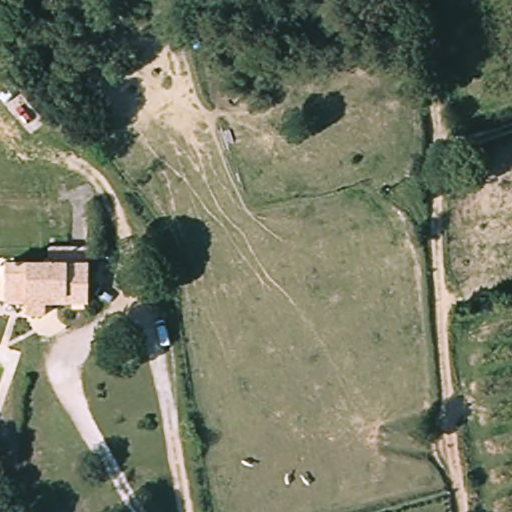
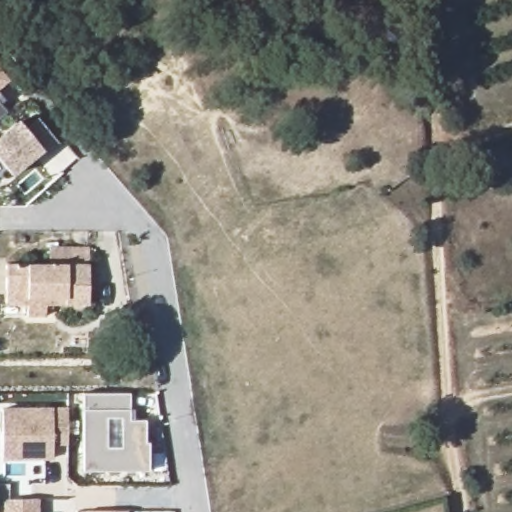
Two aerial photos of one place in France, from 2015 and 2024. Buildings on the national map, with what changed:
new [(11,80),(0,89),(0,67),(11,80)]
new [(0,117),(0,94),(5,100),(2,103),(7,111),(0,117)]
new [(25,126),(37,117),(59,143),(46,154),(43,150),(12,175),(0,160),(0,135),(18,119),(25,126)]
unchanged [(50,267),(50,250),(88,250),(90,304),(51,305),(51,315),(30,315),(30,306),(6,306),(6,268),(50,267)]
new [(82,392),(130,393),(130,409),(130,419),(145,419),(145,442),(149,442),(148,471),(82,471),(81,409),(82,392)]
new [(68,407),(67,443),(52,444),(52,458),(1,460),(1,406),(52,406),(68,407)]
new [(2,499),(38,498),(39,512),(2,512),(2,499)]
new [(128,510),(128,512),(85,512),(85,510),(128,510)]

